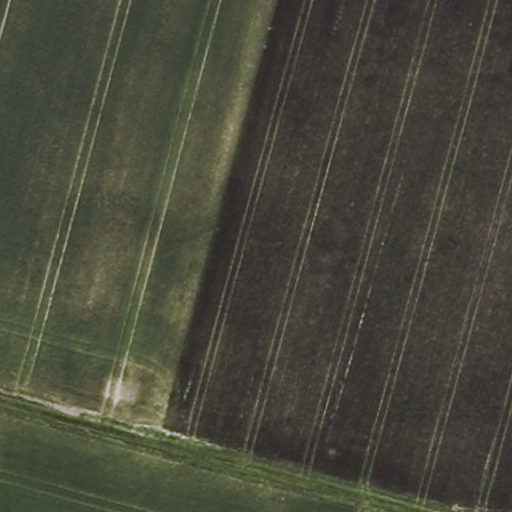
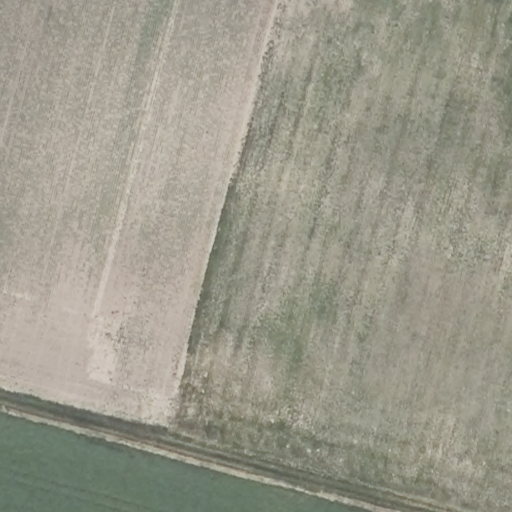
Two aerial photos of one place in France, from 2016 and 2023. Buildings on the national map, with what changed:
[]

